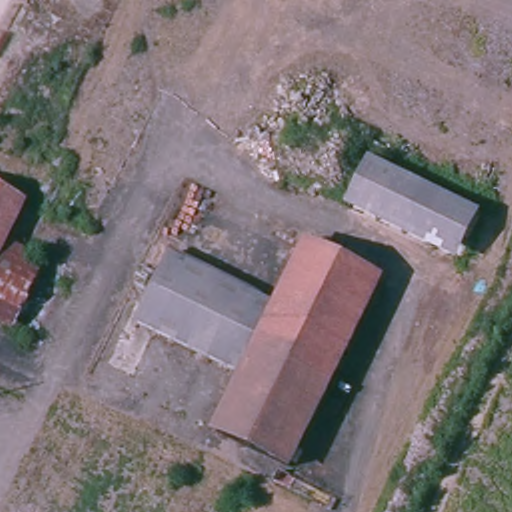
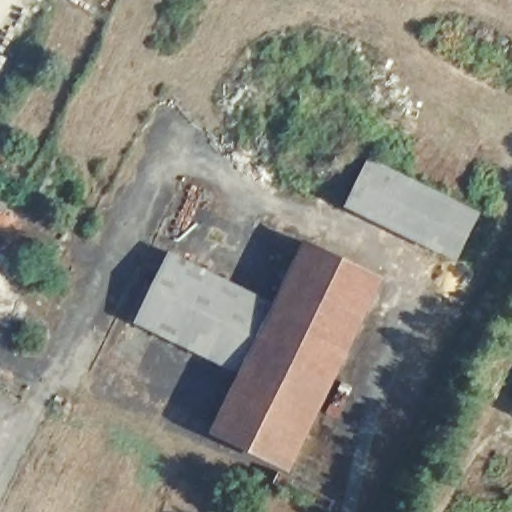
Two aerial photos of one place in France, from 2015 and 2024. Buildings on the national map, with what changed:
unchanged [(350,210),(375,159),(488,215),(460,268),(350,210)]
unchanged [(0,337),(0,192),(27,205),(7,242),(25,252),(21,259),(69,281),(30,351),(0,337)]
unchanged [(241,380),(137,329),(176,253),(280,304),(310,241),(390,281),(295,477),(215,435),(241,380)]

